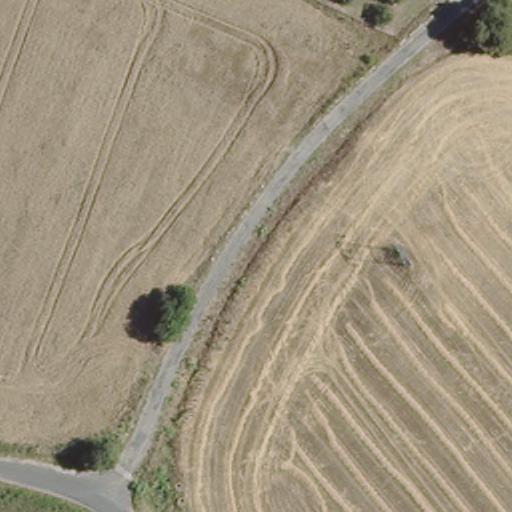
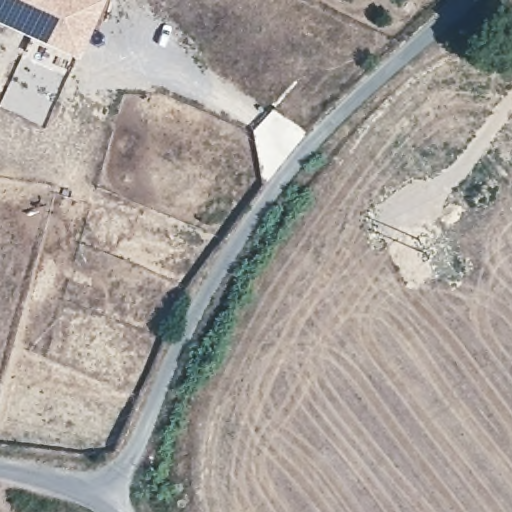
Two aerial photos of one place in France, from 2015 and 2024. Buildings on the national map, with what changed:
new [(0,18),(0,0),(101,0),(78,53),(0,18)]

